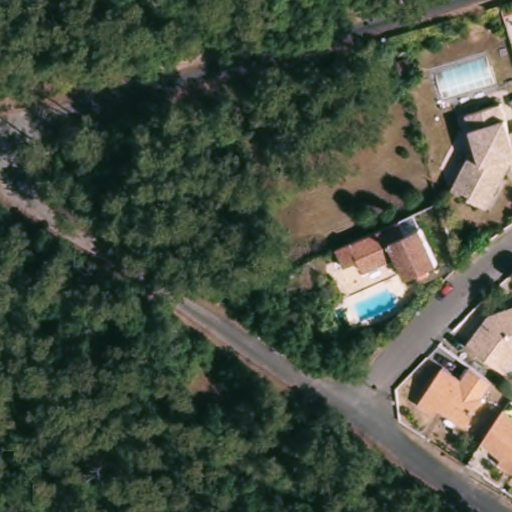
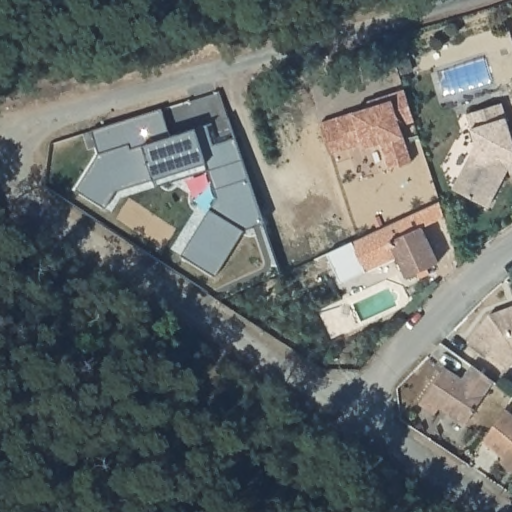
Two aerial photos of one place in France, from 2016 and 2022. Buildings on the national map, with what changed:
new [(366,102),(381,98),(403,91),(411,119),(397,124),(409,160),(387,167),(378,141),(361,146),(360,142),(328,152),(319,124),(368,108),(366,102)]
unchanged [(510,131),(512,131),(512,167),(508,168),(487,205),(452,185),(476,142),(466,113),(501,102),(510,131)]
new [(95,151),(88,127),(159,106),(169,136),(205,124),(212,144),(234,136),(263,222),(244,230),(216,276),(183,254),(220,197),(210,164),(116,191),(105,208),(75,189),(95,151)]
unchanged [(403,218),(410,232),(425,225),(441,261),(409,276),(399,256),(368,270),(362,258),(347,265),(340,247),(403,218)]
unchanged [(467,340),(490,310),(507,305),(512,303),(512,359),(505,367),(467,340)]
unchanged [(435,413),(420,403),(444,365),(463,377),(472,364),(494,380),(466,423),(465,423),(447,411),(440,406),(435,413)]
unchanged [(512,407),(512,460),(502,453),(505,449),(483,435),(505,402),(512,407)]

